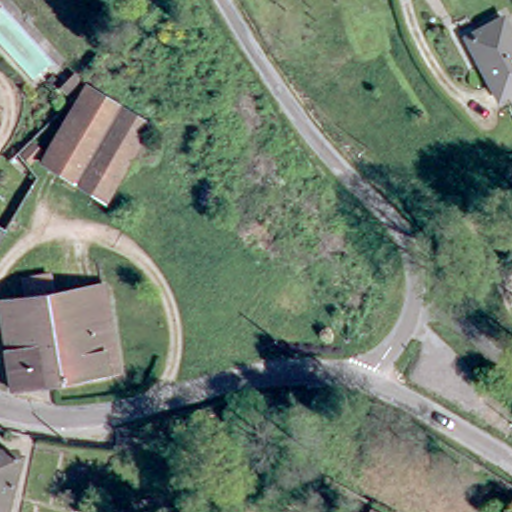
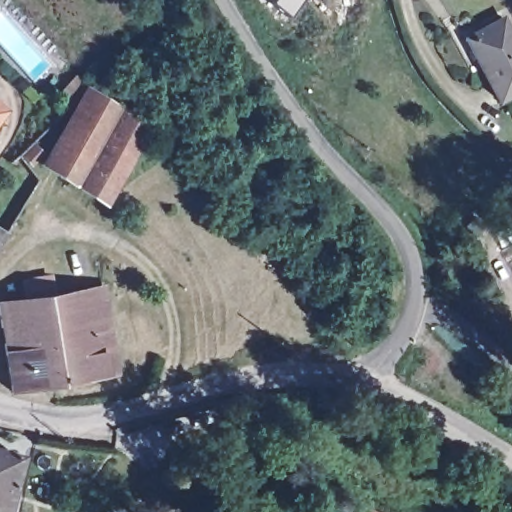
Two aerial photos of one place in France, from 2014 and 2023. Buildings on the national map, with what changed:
unchanged [(500,10),(512,31),(512,85),(496,95),(492,89),(477,98),(469,85),(488,73),(465,34),(500,10)]
unchanged [(83,69),(89,75),(77,87),(72,81),(83,69)]
unchanged [(102,206),(40,163),(97,79),(159,123),(146,141),(102,206)]
unchanged [(34,140),(43,149),(32,161),(23,152),(34,140)]
unchanged [(112,367),(9,389),(0,354),(0,301),(92,279),(112,367)]
unchanged [(0,492),(0,448),(15,454),(0,492)]
unchanged [(367,510),(371,512),(366,512),(367,510)]

